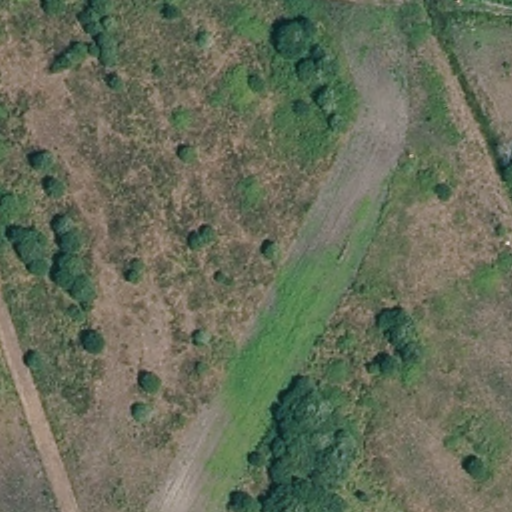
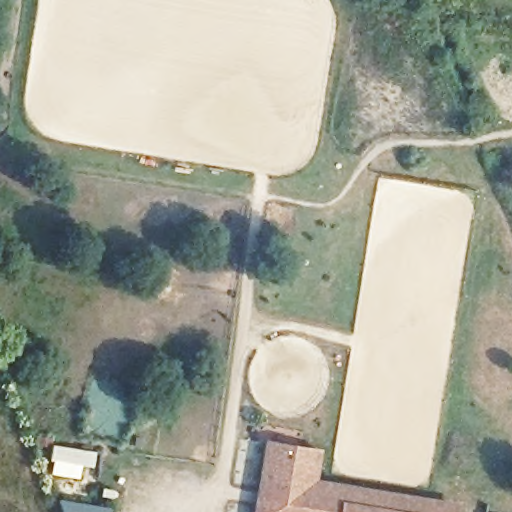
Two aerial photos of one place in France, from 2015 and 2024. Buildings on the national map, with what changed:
new [(321,448),(317,477),(459,500),(457,512),(254,512),(266,437),(321,448)]
new [(52,443),(96,450),(94,467),(81,465),(79,478),(49,473),(52,443)]
new [(111,507),(111,512),(59,512),(57,498),(111,507)]

